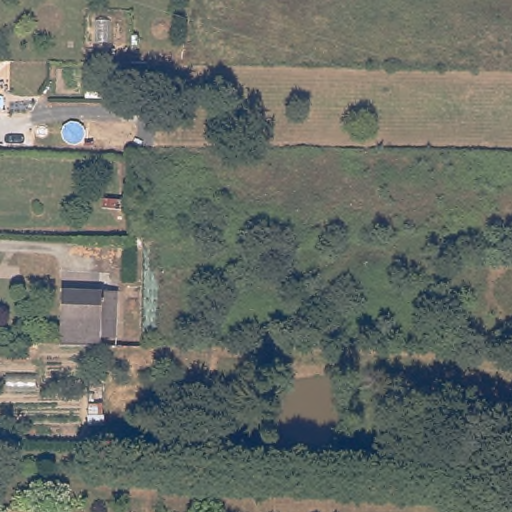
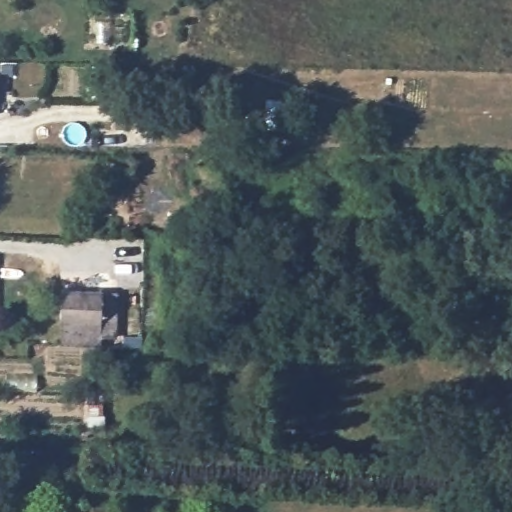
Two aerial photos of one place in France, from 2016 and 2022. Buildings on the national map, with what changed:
unchanged [(71,345),(60,345),(62,290),(102,291),(116,292),(115,322),(115,337),(101,336),(101,346),(71,345)]

